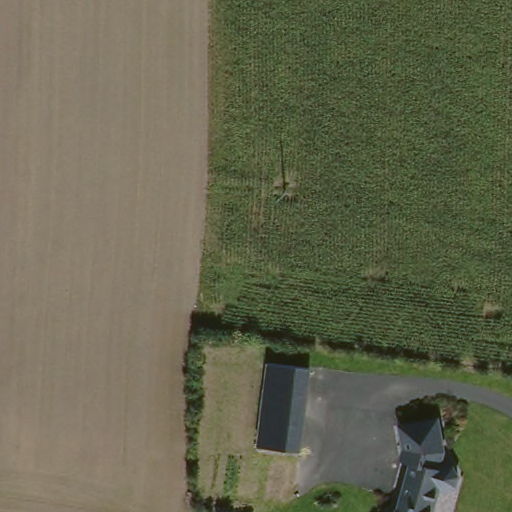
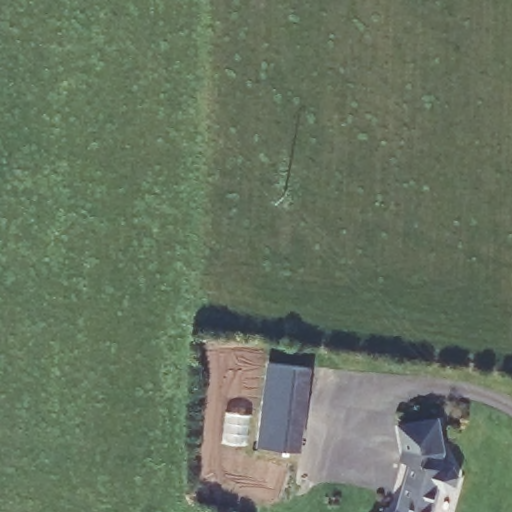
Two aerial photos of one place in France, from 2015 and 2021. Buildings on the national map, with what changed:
unchanged [(310,366),(307,452),(256,447),(264,361),(310,366)]
unchanged [(439,504),(436,512),(402,512),(405,502),(408,491),(415,468),(408,467),(403,431),(443,426),(446,462),(443,470),(457,474),(460,484),(458,496),(449,499),(441,496),(439,504)]

